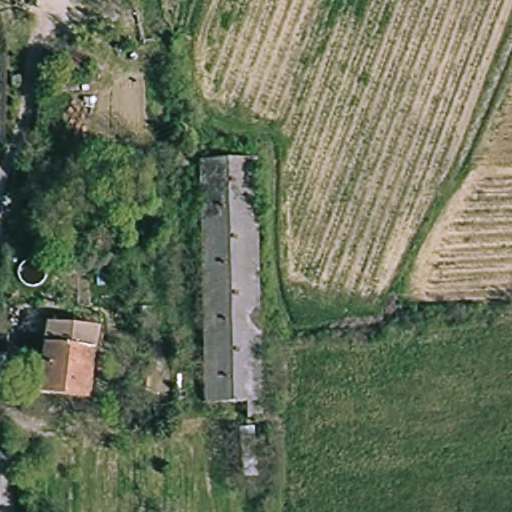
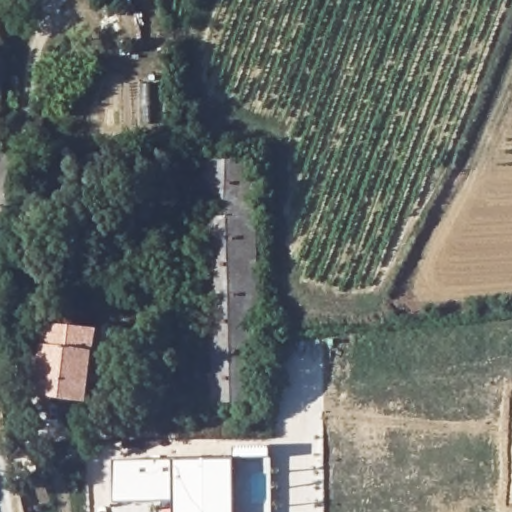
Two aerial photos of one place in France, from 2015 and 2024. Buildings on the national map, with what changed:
unchanged [(245,416),(244,402),(206,402),(205,157),(256,156),(259,417),(245,416)]
unchanged [(72,229),(75,204),(122,210),(119,235),(72,229)]
unchanged [(53,324),(98,329),(88,402),(43,396),(53,324)]
new [(115,504),(115,462),(235,460),(236,448),(272,448),(272,458),(273,512),(175,512),(175,502),(115,504)]

